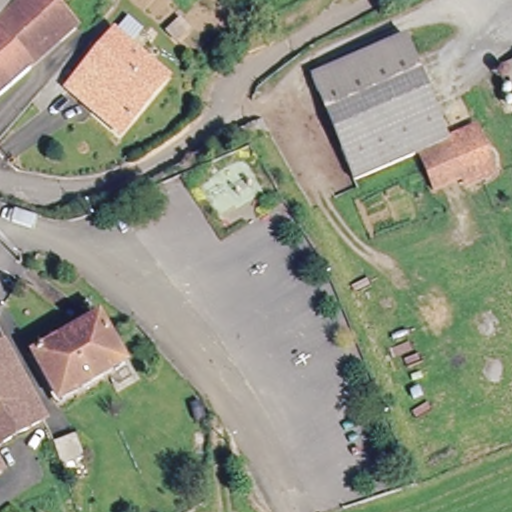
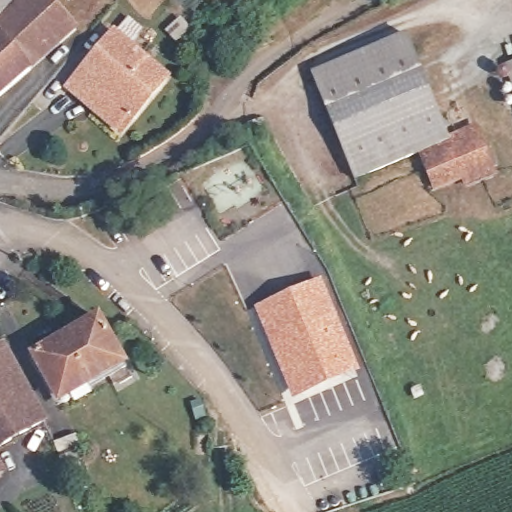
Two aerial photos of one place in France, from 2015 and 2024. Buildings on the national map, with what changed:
unchanged [(0,14),(0,0),(14,0),(0,14)]
unchanged [(0,31),(0,24),(29,0),(30,0),(68,44),(0,100),(0,36),(2,34),(0,31)]
unchanged [(85,99),(70,85),(115,35),(164,78),(128,119),(117,130),(85,99)]
unchanged [(467,190),(464,181),(434,193),(418,156),(356,180),(313,76),(407,40),(450,145),(476,135),(494,179),(467,190)]
unchanged [(501,72),(512,69),(512,103),(501,72)]
new [(321,277),(360,371),(292,400),(253,306),(321,277)]
unchanged [(96,326),(119,368),(106,375),(60,401),(39,362),(37,360),(77,338),(96,326)]
unchanged [(15,373),(42,421),(0,448),(0,353),(3,351),(15,373)]
unchanged [(75,435),(87,455),(69,461),(59,441),(75,435)]
unchanged [(0,473),(0,463),(4,470),(0,473)]

